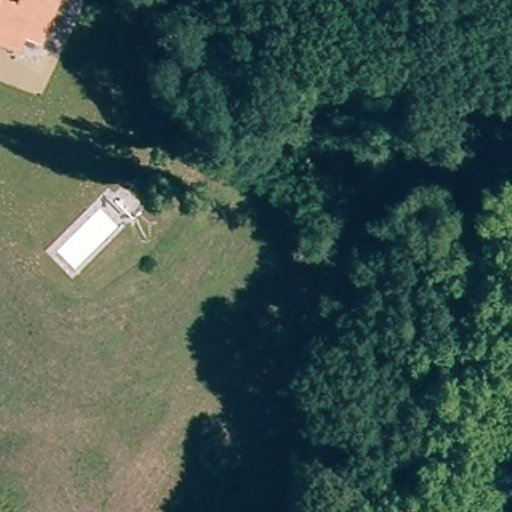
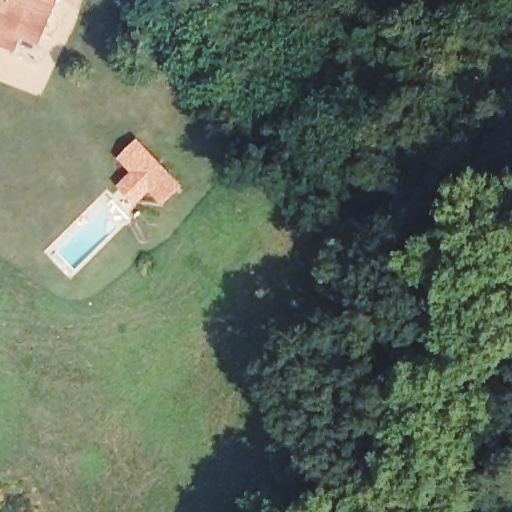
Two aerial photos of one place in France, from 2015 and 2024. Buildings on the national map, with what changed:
unchanged [(15,27),(8,42),(0,38),(0,0),(47,0),(30,34),(15,27)]
new [(131,170),(119,156),(139,136),(186,184),(165,204),(153,192),(143,200),(142,199),(141,200),(133,192),(129,194),(118,183),(131,170)]

